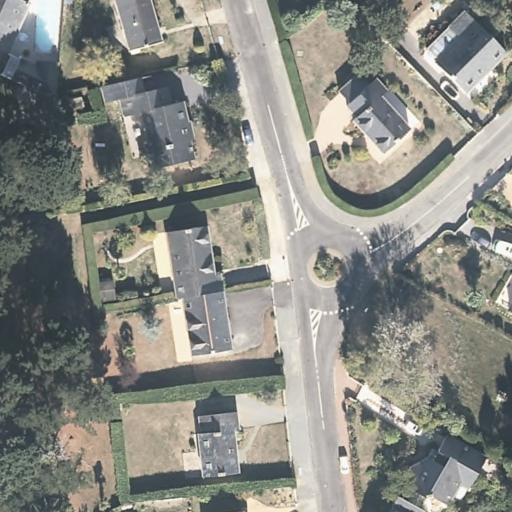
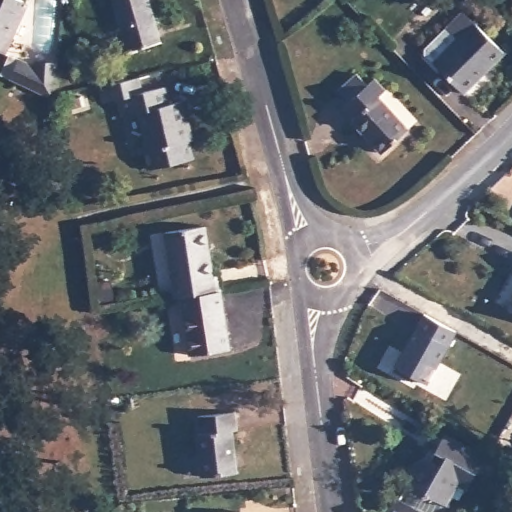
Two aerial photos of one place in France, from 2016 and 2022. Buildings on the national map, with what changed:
unchanged [(0,45),(0,0),(27,0),(5,47),(0,45)]
unchanged [(162,41),(129,50),(116,0),(149,0),(162,41)]
unchanged [(510,57),(468,97),(432,61),(431,50),(469,15),(510,57)]
unchanged [(36,64),(37,59),(59,61),(58,74),(57,81),(56,95),(56,99),(10,77),(20,57),(36,64)]
unchanged [(367,82),(370,82),(375,77),(385,89),(378,96),(407,127),(382,152),(351,118),(355,114),(345,104),(347,102),(336,89),(356,71),(367,82)]
unchanged [(165,90),(168,105),(179,103),(192,160),(149,170),(144,151),(149,150),(141,113),(126,117),(121,118),(116,99),(109,101),(103,102),(100,86),(106,85),(139,77),(143,94),(165,90)]
unchanged [(83,111),(71,113),(69,104),(80,101),(83,111)]
unchanged [(181,297),(175,298),(164,231),(205,225),(212,272),(218,272),(221,290),(181,297)]
unchanged [(226,312),(232,347),(191,354),(181,297),(221,290),(226,312)]
unchanged [(508,309),(512,303),(512,311),(508,309)]
new [(416,328),(425,314),(457,332),(450,345),(428,383),(394,366),(416,328)]
unchanged [(237,430),(232,431),(237,472),(202,477),(196,433),(200,432),(197,416),(234,411),(237,430)]
unchanged [(445,453),(440,450),(450,433),(489,456),(472,487),(463,482),(450,505),(434,495),(428,495),(423,506),(428,508),(426,512),(398,512),(392,508),(401,493),(404,495),(411,486),(405,482),(416,463),(432,456),(440,461),(445,453)]
unchanged [(231,512),(246,511),(246,512),(231,512)]

